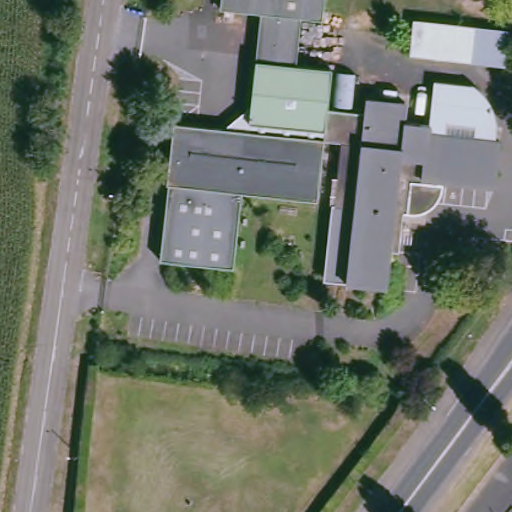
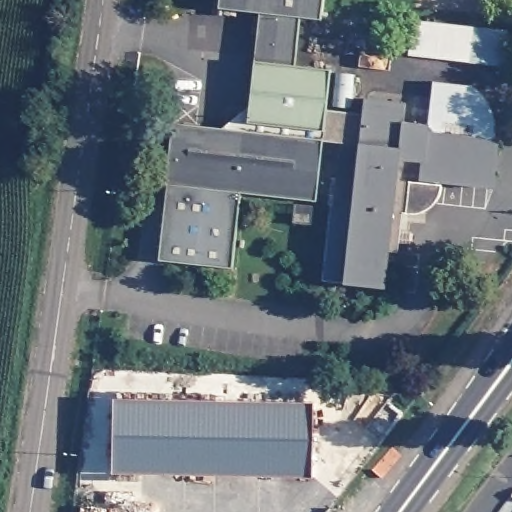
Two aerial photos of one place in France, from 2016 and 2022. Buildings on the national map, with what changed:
unchanged [(319,16),(304,15),(299,64),(334,68),(331,111),(371,116),(374,100),(410,103),(409,118),(431,120),(437,80),(467,84),(476,81),(487,95),(494,120),(482,125),(479,139),(500,141),(494,186),(444,179),(444,181),(446,183),(446,185),(446,186),(446,188),(447,190),(446,192),(446,194),(446,195),(445,197),(444,199),(444,201),(443,202),(442,204),(440,207),(439,208),(438,209),(436,211),(434,212),(433,213),(432,213),(428,215),(424,216),(421,216),(418,216),(413,253),(403,251),(399,286),(355,279),(329,277),(336,207),(343,143),(326,141),(319,202),(243,194),(235,269),(163,262),(172,186),(171,186),(178,123),(228,128),(254,102),(263,8),(219,4),(220,0),(322,0),(319,16)]
unchanged [(476,29),(471,61),(414,52),(421,21),(476,29)]
unchanged [(508,33),(502,65),(471,61),(476,29),(508,33)]
new [(113,473),(116,399),(315,401),(314,475),(113,473)]

